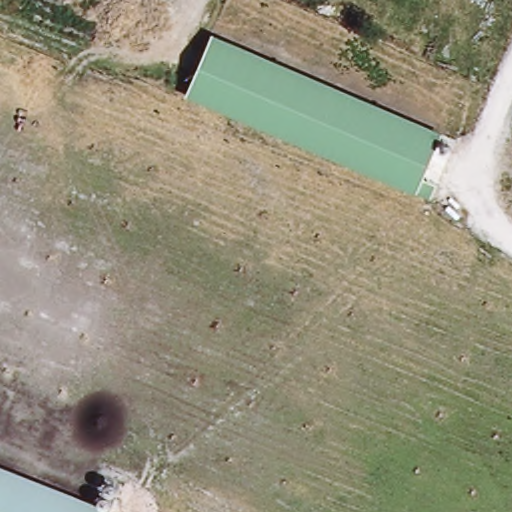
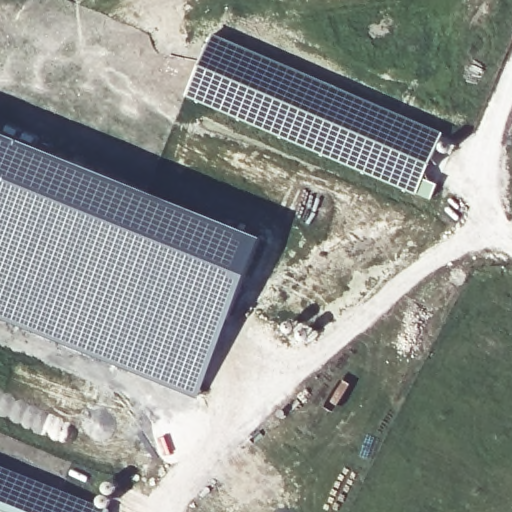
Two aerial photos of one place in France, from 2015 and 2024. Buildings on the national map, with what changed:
unchanged [(172,99),(196,40),(258,67),(228,123),(172,99)]
unchanged [(258,67),(430,136),(406,195),(228,123),(258,67)]
new [(265,237),(197,399),(121,368),(0,317),(0,130),(265,237)]
unchanged [(0,512),(0,467),(109,512),(0,512)]

